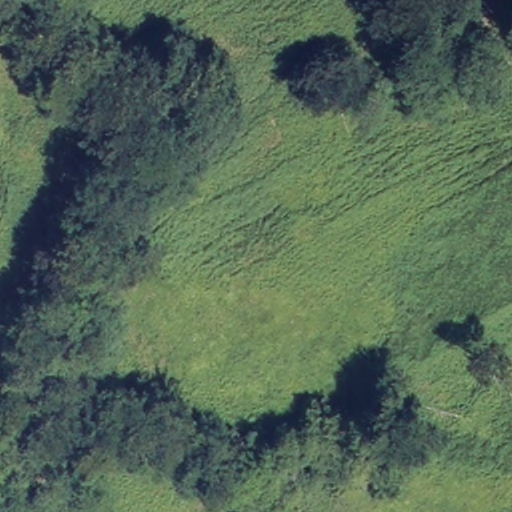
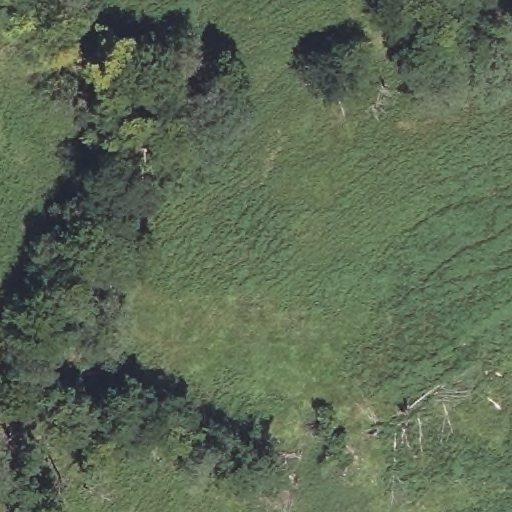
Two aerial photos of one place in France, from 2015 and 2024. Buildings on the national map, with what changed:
unchanged [(322,493),(305,507),(283,483),(301,470),(322,493)]
unchanged [(224,487),(255,507),(252,512),(207,512),(224,487)]

